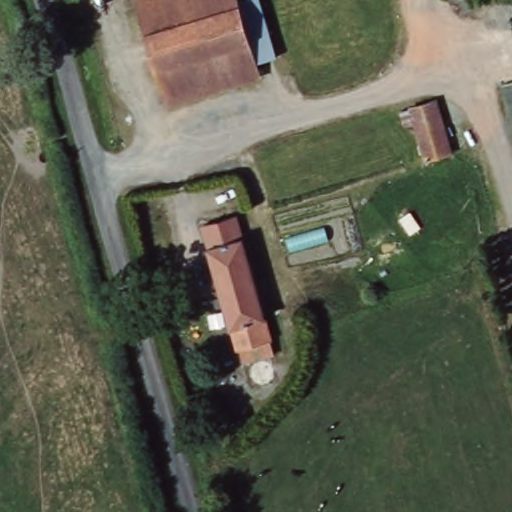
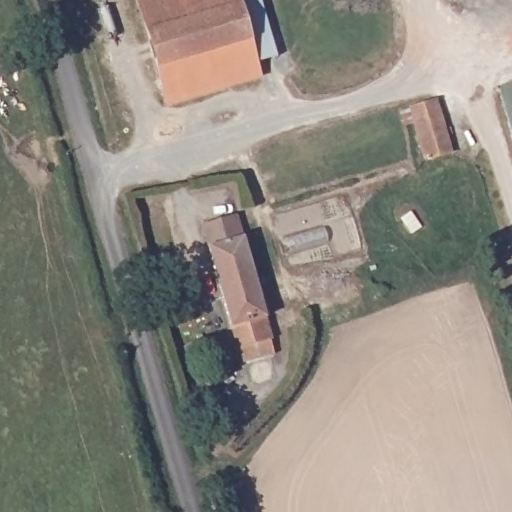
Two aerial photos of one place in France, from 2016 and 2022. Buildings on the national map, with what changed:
unchanged [(170,103),(139,0),(239,0),(240,3),(257,62),(261,76),(170,103)]
unchanged [(261,0),(278,56),(257,62),(240,3),(250,0),(261,0)]
unchanged [(512,83),(512,109),(505,85),(512,83)]
unchanged [(454,155),(426,163),(416,124),(405,128),(399,111),(412,106),(440,100),(454,155)]
unchanged [(242,376),(238,363),(198,221),(234,212),(233,206),(247,202),(255,230),(240,235),(264,319),(272,317),(277,319),(279,323),(280,327),(277,332),(269,335),(274,353),(277,366),(242,376)]
unchanged [(220,399),(226,419),(203,424),(198,405),(220,399)]

